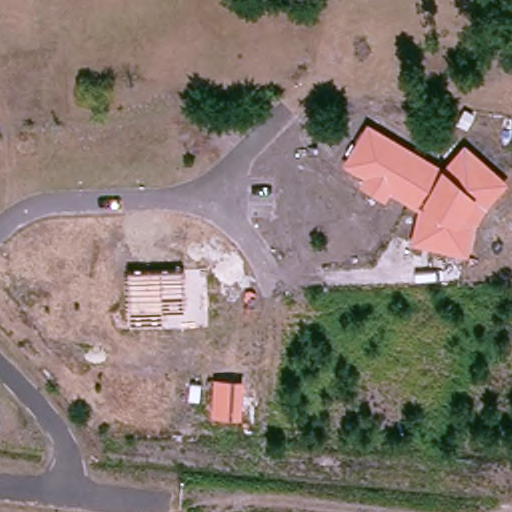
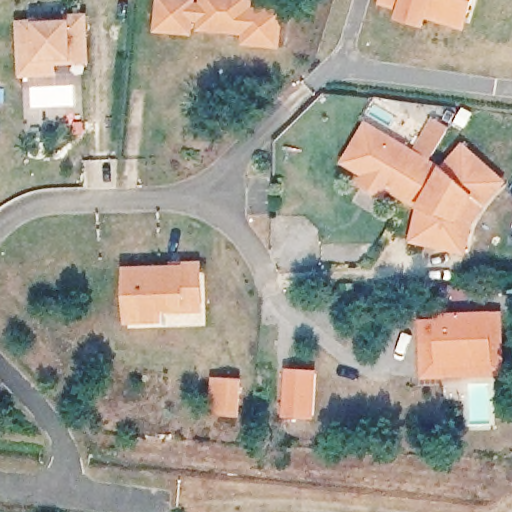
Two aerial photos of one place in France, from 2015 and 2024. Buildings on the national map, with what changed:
new [(200,1),(201,0),(255,0),(254,6),(286,10),(282,49),(242,46),(243,35),(198,31),(199,22),(195,21),(193,35),(154,32),(157,0),(197,0),(197,1),(200,1)]
new [(426,28),(399,19),(402,10),(380,3),(381,0),(473,0),(464,30),(429,19),(426,28)]
new [(55,60),(55,71),(40,71),(22,72),(21,22),(70,20),(70,15),(83,14),(83,28),(87,28),(87,55),(87,60),(55,60)]
unchanged [(509,184),(474,230),(468,259),(412,245),(419,211),(390,194),(386,203),(359,185),(363,178),(342,165),(367,123),(442,167),(465,145),(509,184)]
new [(126,324),(125,267),(170,265),(170,259),(203,259),(205,313),(165,314),(165,322),(126,324)]
new [(437,317),(437,313),(502,312),(506,374),(423,379),(420,319),(437,317)]
new [(281,367),(317,369),(314,419),(278,417),(281,367)]
unchanged [(243,381),(242,420),(212,418),(214,379),(243,381)]

